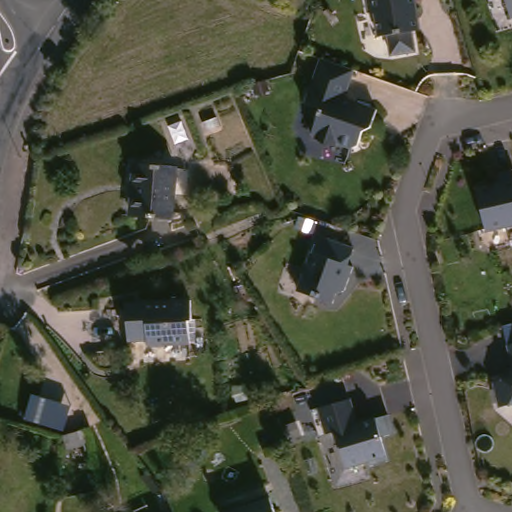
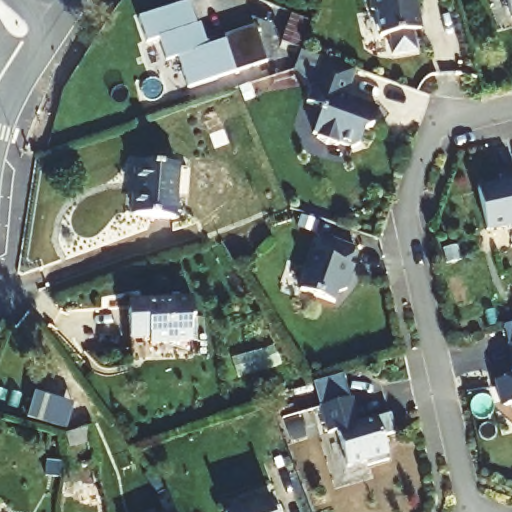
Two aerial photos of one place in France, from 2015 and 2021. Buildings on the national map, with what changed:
new [(184,0),(192,24),(195,23),(201,40),(251,24),(263,60),(184,86),(174,56),(162,60),(154,37),(142,41),(134,17),(184,0)]
unchanged [(418,54),(395,55),(393,36),(384,36),(382,15),(376,11),(375,0),(421,0),(423,21),(425,33),(416,34),(418,54)]
unchanged [(358,69),(362,70),(354,99),(388,108),(382,126),(375,131),(371,145),(364,148),(350,144),(349,146),(338,146),(328,140),(329,138),(324,136),(331,111),(315,107),(329,60),(358,69)]
unchanged [(181,167),(177,218),(140,215),(142,184),(136,183),(139,164),(181,167)]
unchanged [(489,230),(480,190),(503,184),(501,175),(512,173),(512,225),(489,230)]
unchanged [(357,246),(353,263),(358,265),(352,288),(344,293),(341,303),(306,293),(321,237),(357,246)]
unchanged [(190,343),(149,343),(149,336),(131,337),(131,315),(131,300),(146,300),(191,299),(190,343)]
unchanged [(504,401),(500,386),(504,380),(512,378),(512,404),(510,405),(504,401)]
unchanged [(355,394),(363,418),(394,410),(400,427),(387,431),(394,455),(373,460),(371,456),(352,461),(342,426),(332,428),(325,403),(355,394)]
unchanged [(276,424),(262,428),(253,403),(267,398),(276,424)]
unchanged [(85,403),(96,460),(76,464),(65,407),(85,403)]
unchanged [(280,512),(237,512),(275,498),(280,512)]

